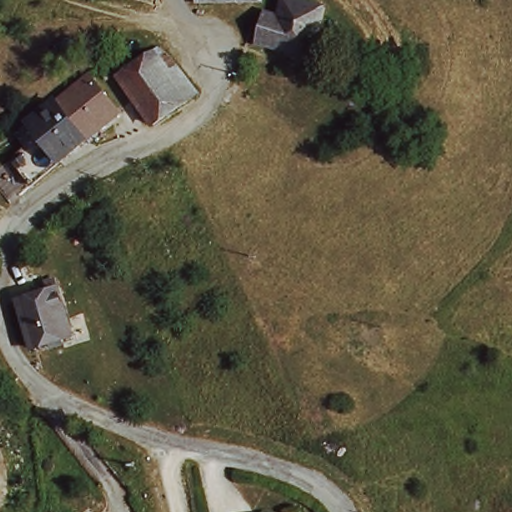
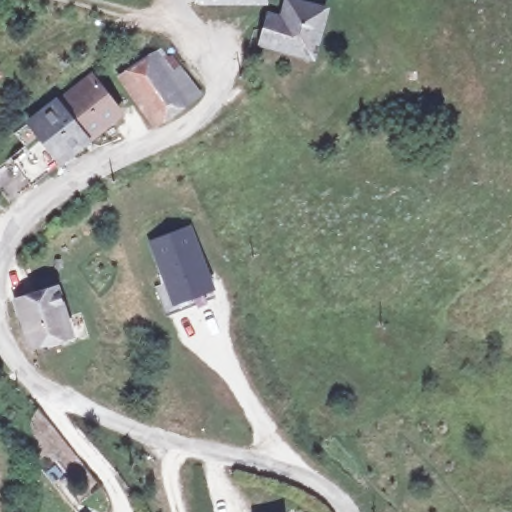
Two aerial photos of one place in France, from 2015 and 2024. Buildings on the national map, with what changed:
unchanged [(274,1),(291,6),(293,0),(311,0),(324,4),(309,50),(261,38),(274,1)]
unchanged [(149,50),(156,54),(170,51),(193,87),(151,117),(118,70),(149,50)]
unchanged [(88,76),(116,113),(81,139),(78,134),(54,100),(88,76)]
unchanged [(78,134),(81,139),(26,180),(10,160),(27,145),(14,129),(18,127),(54,100),(78,134)]
new [(148,241),(189,225),(214,290),(173,305),(148,241)]
unchanged [(18,295),(53,283),(68,332),(30,342),(18,295)]

